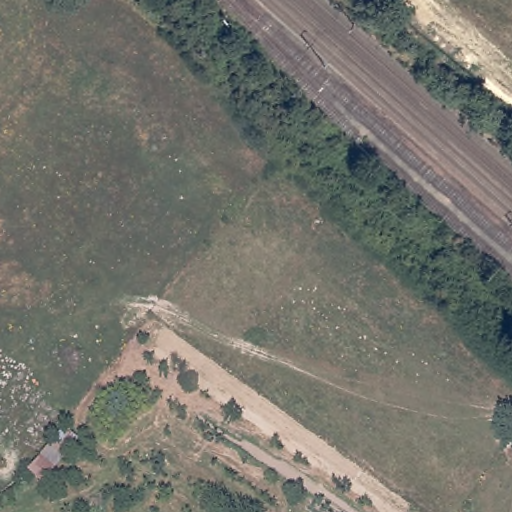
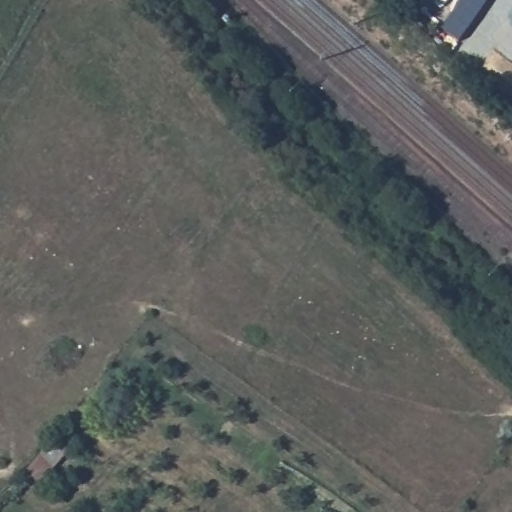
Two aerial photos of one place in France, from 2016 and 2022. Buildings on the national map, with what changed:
new [(458,45),(441,31),(462,0),(487,0),(458,45)]
unchanged [(81,434),(40,486),(23,472),(64,421),(81,434)]

